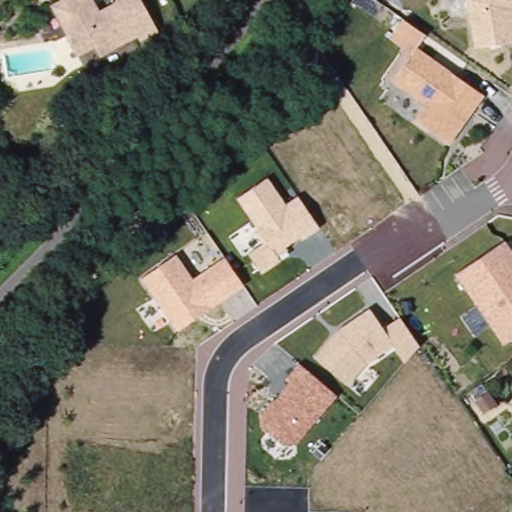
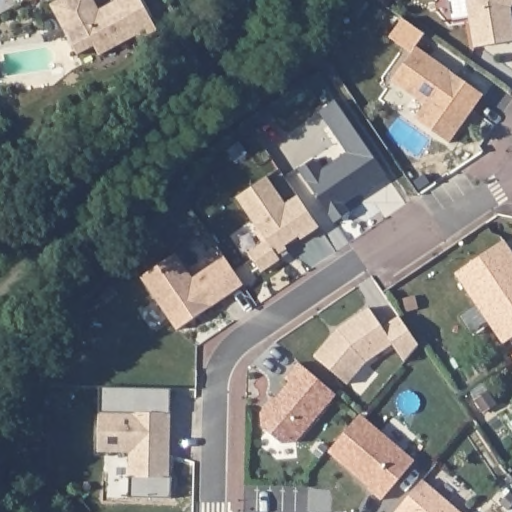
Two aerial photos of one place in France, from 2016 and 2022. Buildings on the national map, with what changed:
unchanged [(139,42),(136,37),(99,57),(94,48),(77,57),(50,6),(61,0),(92,0),(98,12),(114,3),(115,0),(140,0),(155,27),(157,32),(139,42)]
unchanged [(511,8),(512,14),(512,41),(475,48),(467,0),(512,0),(512,7),(511,8)]
unchanged [(449,144),(414,120),(425,105),(391,81),(416,47),(483,95),(449,144)]
new [(314,159),(322,171),(348,153),(320,112),(336,101),(387,176),(345,204),(350,212),(335,223),(299,170),(314,159)]
unchanged [(248,254),(263,245),(253,230),(258,227),(238,198),(268,178),(285,205),(299,196),(320,229),(301,241),(299,239),(286,248),(290,255),(261,274),(248,254)]
unchanged [(503,344),(455,274),(504,241),(512,253),(512,337),(503,344)]
unchanged [(141,279),(176,255),(193,279),(226,258),(244,287),(177,332),(141,279)]
unchanged [(386,327),(400,315),(422,347),(406,367),(392,347),(368,362),(349,388),(315,356),(341,325),(371,308),(386,327)]
unchanged [(261,429),(262,413),(290,383),(285,381),(300,365),(336,396),(297,445),(283,446),(261,429)]
new [(99,412),(171,414),(169,479),(129,478),(130,453),(98,452),(99,412)]
new [(360,415),(415,461),(382,500),(369,489),(371,487),(329,452),(360,415)]
new [(456,512),(395,512),(421,482),(456,512)]

